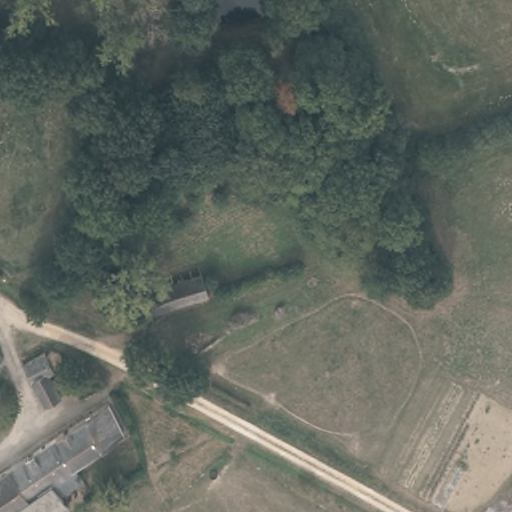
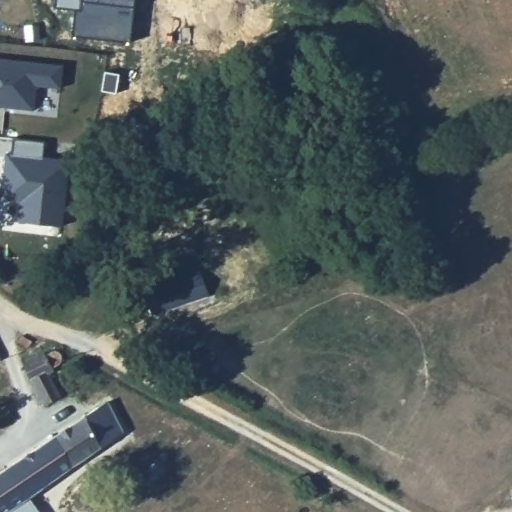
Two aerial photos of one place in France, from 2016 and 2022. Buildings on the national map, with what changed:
new [(61,87),(37,85),(34,110),(5,107),(0,106),(0,59),(64,66),(61,87)]
new [(5,171),(7,154),(11,154),(13,138),(45,142),(44,157),(69,161),(62,226),(19,222),(20,202),(2,200),(4,178),(5,171)]
unchanged [(155,283),(199,265),(207,287),(163,303),(155,283)]
unchanged [(0,362),(0,345),(8,358),(0,362)]
unchanged [(75,359),(68,362),(80,386),(74,391),(75,396),(58,404),(35,365),(68,347),(75,359)]
unchanged [(73,471),(86,493),(64,510),(49,486),(8,512),(0,512),(0,476),(104,403),(123,435),(73,471)]
unchanged [(64,510),(60,512),(8,512),(49,486),(64,510)]

